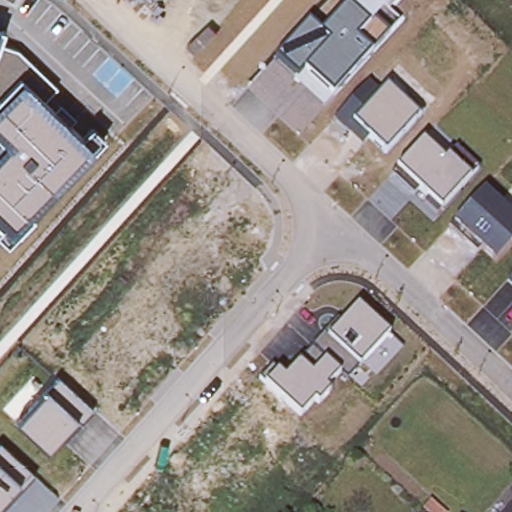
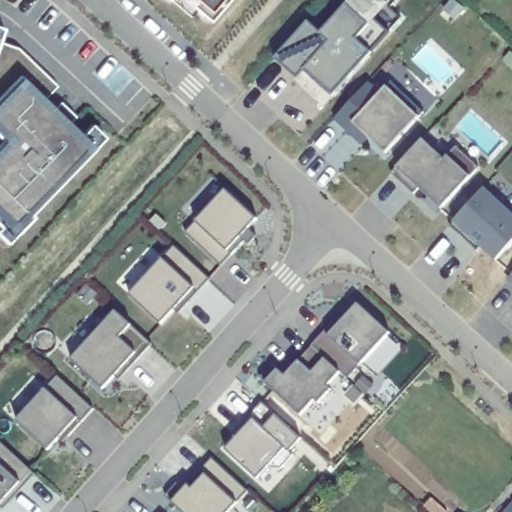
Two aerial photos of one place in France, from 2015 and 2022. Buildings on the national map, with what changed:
new [(170,2),(168,0),(172,0),(170,2)]
new [(185,0),(228,0),(209,21),(185,0)]
unchanged [(298,80),(277,60),(309,23),(323,35),(346,7),(353,0),(383,0),(391,6),(376,22),(388,34),(376,47),(372,54),(334,95),(324,109),(298,80)]
unchanged [(0,42),(0,28),(4,30),(0,42)]
unchanged [(0,231),(2,229),(0,227),(0,43),(18,50),(56,88),(40,97),(93,149),(30,213),(34,219),(8,245),(0,238),(0,231)]
unchanged [(382,95),(388,88),(391,83),(423,113),(420,117),(387,152),(372,139),(364,148),(334,120),(369,84),(382,95)]
unchanged [(479,168),(470,178),(443,208),(438,215),(424,202),(428,196),(419,187),(414,196),(395,177),(400,169),(424,142),(446,162),(449,159),(457,148),(479,168)]
new [(186,234),(198,221),(226,190),(257,219),(248,230),(256,237),(249,246),(244,242),(222,265),(186,234)]
unchanged [(481,249),(478,254),(452,229),(456,223),(484,190),(512,215),(512,245),(496,263),(481,249)]
new [(130,295),(163,258),(175,245),(212,278),(178,315),(173,310),(161,322),(130,295)]
unchanged [(508,283),(512,278),(512,287),(508,283)]
unchanged [(266,385),(261,378),(272,367),(278,374),(286,380),(299,363),(338,320),(344,323),(358,307),(389,335),(361,365),(348,379),(341,373),(339,375),(326,389),(331,392),(319,405),(314,400),(301,416),(266,385)]
new [(72,360),(118,312),(131,325),(153,345),(121,378),(116,374),(103,388),(72,360)]
unchanged [(18,421),(45,390),(58,377),(91,410),(93,410),(79,425),(76,420),(49,450),(18,421)]
new [(226,450),(236,440),(231,435),(262,403),(278,415),(301,438),(289,451),(294,456),(281,470),(267,468),(258,478),(226,450)]
unchanged [(3,510),(1,503),(0,505),(0,444),(35,476),(3,510)]
new [(164,495),(177,482),(183,490),(188,485),(211,457),(249,490),(238,503),(229,512),(182,512),(173,503),(164,495)]
unchanged [(433,495),(449,509),(446,512),(435,512),(425,503),(433,495)]
unchanged [(508,512),(512,508),(512,512),(508,512)]

